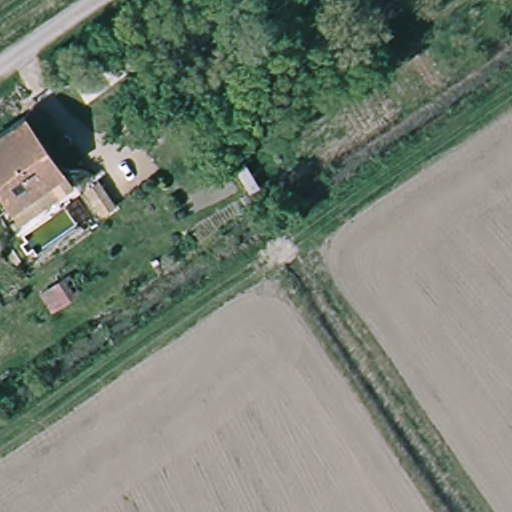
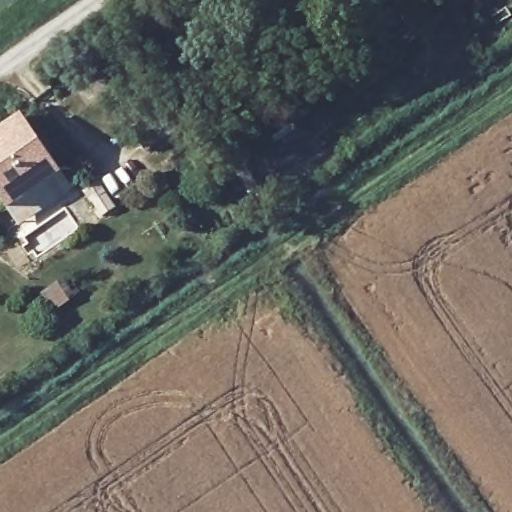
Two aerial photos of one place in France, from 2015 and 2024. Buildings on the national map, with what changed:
unchanged [(29,115),(67,167),(37,187),(0,134),(29,115)]
unchanged [(37,187),(10,205),(0,189),(0,134),(37,187)]
unchanged [(108,193),(116,207),(103,217),(94,202),(108,193)]
unchanged [(78,277),(88,293),(71,305),(61,290),(78,277)]

